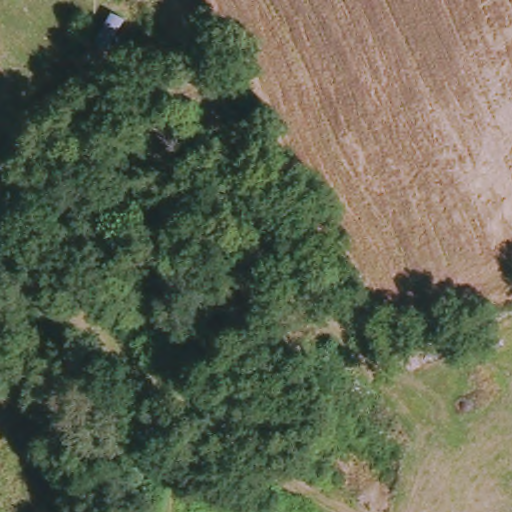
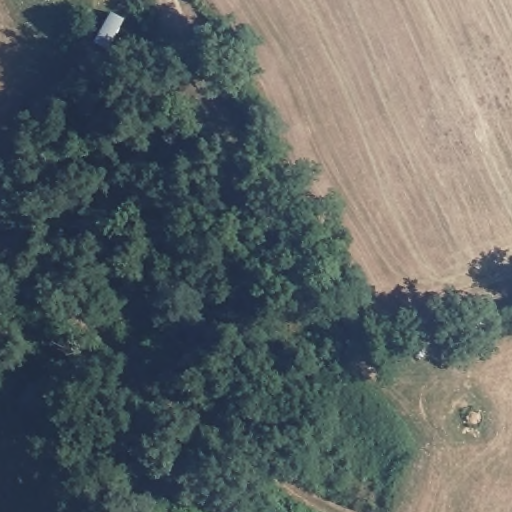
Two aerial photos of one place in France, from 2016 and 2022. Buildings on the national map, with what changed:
unchanged [(110,16),(125,23),(110,52),(94,44),(110,16)]

